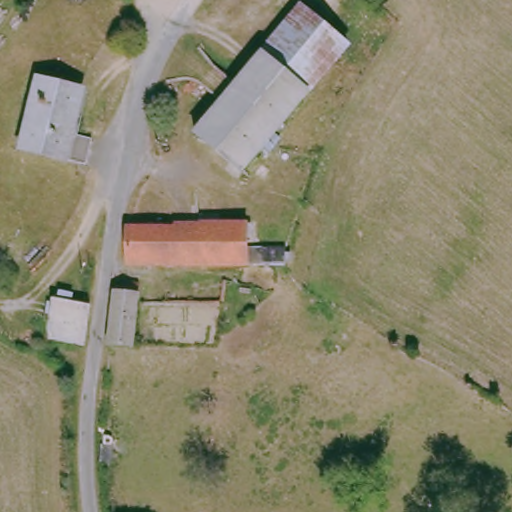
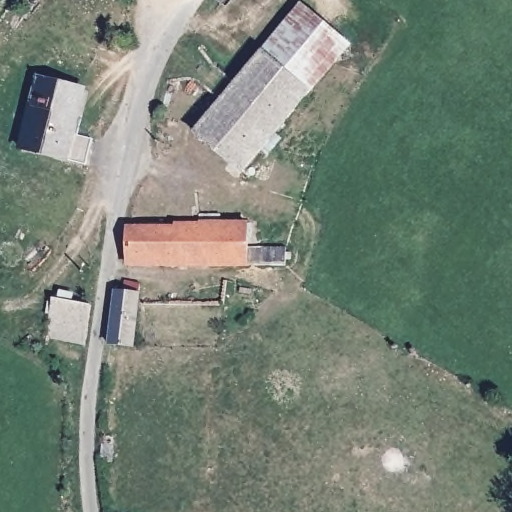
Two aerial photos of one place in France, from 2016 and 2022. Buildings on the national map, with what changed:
unchanged [(309,89),(238,176),(188,130),(254,50),(293,2),(349,44),(309,89)]
unchanged [(30,79),(76,88),(68,133),(85,136),(81,163),(14,150),(30,79)]
unchanged [(279,264),(223,263),(120,263),(123,224),(246,228),(246,245),(281,247),(279,264)]
unchanged [(127,347),(108,346),(113,290),(121,290),(123,278),(134,279),(131,301),(127,347)]
unchanged [(51,334),(57,296),(86,302),(78,339),(51,334)]

